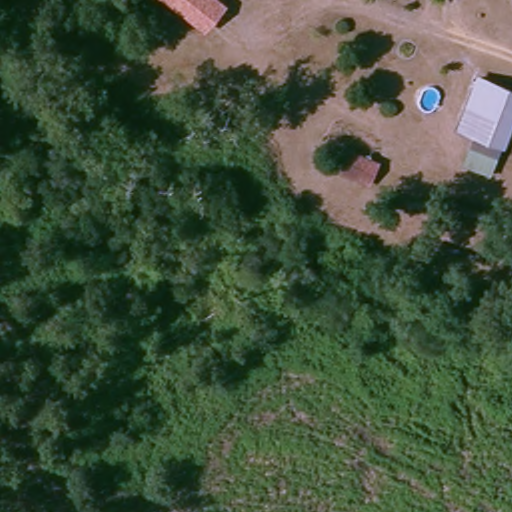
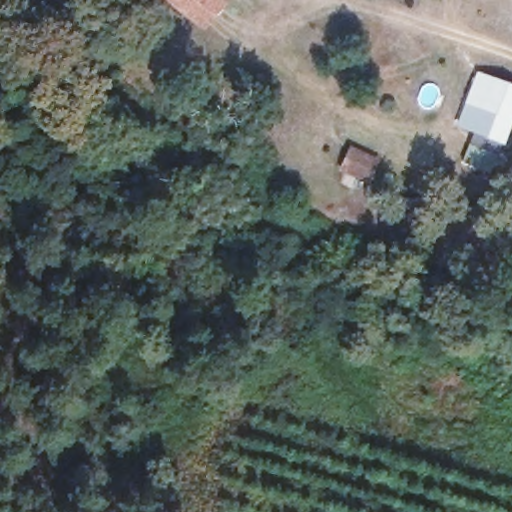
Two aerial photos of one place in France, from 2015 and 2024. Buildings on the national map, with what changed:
unchanged [(58,29),(65,0),(122,0),(108,48),(58,29)]
unchanged [(166,0),(207,0),(219,7),(207,30),(166,0)]
unchanged [(501,156),(479,148),(481,133),(458,125),(480,72),(512,82),(512,131),(507,144),(501,156)]
unchanged [(328,174),(335,154),(351,154),(349,173),(328,174)]

